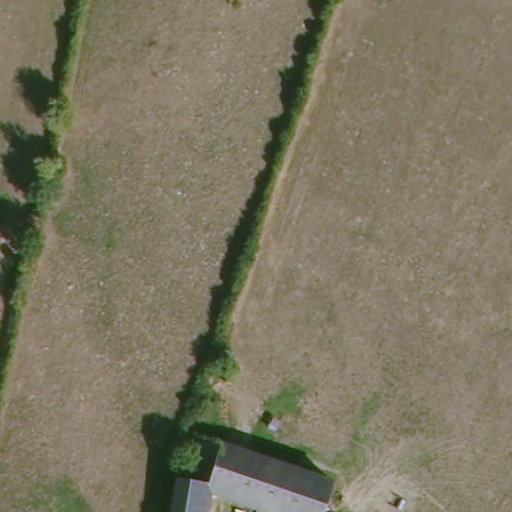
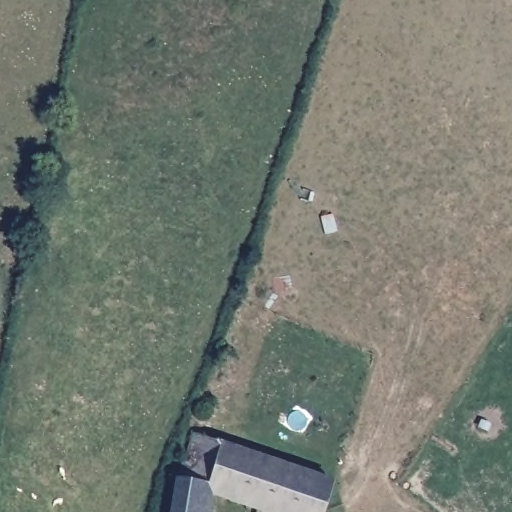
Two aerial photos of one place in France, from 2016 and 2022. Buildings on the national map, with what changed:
unchanged [(315,512),(256,512),(209,499),(207,512),(172,512),(192,435),(325,473),(315,512)]

